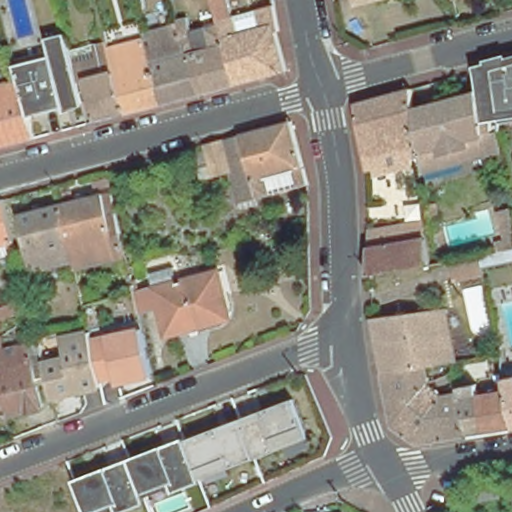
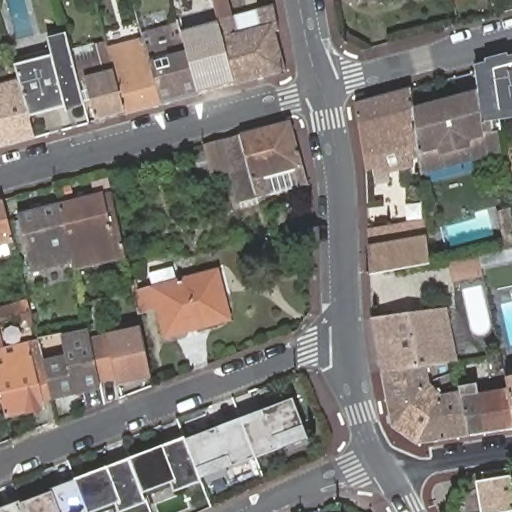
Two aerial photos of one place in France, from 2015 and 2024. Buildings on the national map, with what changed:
unchanged [(277,9),(282,36),(278,37),(286,75),(237,89),(222,29),(214,0),(230,0),(235,20),(277,9)]
unchanged [(361,0),(391,0),(363,7),(361,0)]
unchanged [(451,0),(458,0),(452,2),(451,0)]
unchanged [(189,61),(185,47),(180,26),(191,23),(195,37),(222,29),(237,89),(199,99),(189,61)]
unchanged [(152,70),(149,57),(148,56),(153,55),(150,40),(177,33),(181,47),(185,47),(189,61),(199,99),(163,109),(152,70)]
unchanged [(84,107),(28,122),(27,117),(18,85),(15,74),(50,63),(46,50),(67,44),(75,72),(83,102),(84,107)]
unchanged [(109,56),(145,45),(148,56),(149,57),(152,70),(163,109),(126,119),(109,56)]
unchanged [(101,64),(99,56),(108,52),(109,56),(126,119),(98,126),(89,129),(84,107),(83,102),(75,72),(83,69),(101,64)]
unchanged [(504,137),(495,137),(494,137),(492,137),(490,126),(484,127),(483,124),(482,120),(477,97),(474,82),(473,77),(505,69),(512,67),(512,128),(502,130),(504,137)]
unchanged [(27,117),(28,122),(35,143),(0,153),(0,90),(18,85),(27,117)]
unchanged [(410,116),(415,164),(406,165),(407,172),(370,181),(369,175),(362,177),(353,109),(407,95),(410,116)]
unchanged [(416,172),(415,164),(410,116),(477,97),(482,120),(483,124),(484,127),(490,126),(492,137),(494,137),(495,137),(497,147),(498,157),(498,159),(417,180),(416,172)]
unchanged [(247,207),(244,198),(236,200),(234,192),(241,190),(237,173),(220,177),(210,148),(297,125),(312,187),(247,207)]
unchanged [(72,265),(60,209),(103,197),(103,200),(111,198),(120,236),(125,260),(74,272),(72,265)]
unchanged [(21,249),(14,251),(0,254),(0,200),(8,198),(21,249)]
unchanged [(72,265),(32,275),(18,219),(60,209),(72,265)]
unchanged [(496,251),(505,249),(501,220),(512,218),(512,255),(509,256),(498,258),(496,251)]
unchanged [(371,242),(416,235),(415,224),(423,222),(428,275),(376,283),(375,281),(373,282),(371,242)]
unchanged [(271,255),(296,249),(303,277),(278,280),(271,255)]
unchanged [(484,262),(488,282),(459,287),(455,267),(484,262)]
unchanged [(141,327),(138,311),(223,292),(228,322),(228,325),(227,328),(226,332),(223,335),(220,336),(194,342),(195,348),(173,353),(166,326),(143,332),(141,327)]
unchanged [(33,310),(4,317),(13,348),(40,343),(44,362),(47,377),(36,379),(43,408),(26,412),(25,411),(6,416),(3,402),(0,388),(0,308),(30,300),(33,310)]
unchanged [(373,323),(424,318),(447,317),(461,371),(458,372),(436,376),(431,377),(385,378),(373,323)]
unchanged [(90,338),(141,327),(143,332),(151,373),(116,382),(115,377),(99,379),(90,338)]
unchanged [(99,379),(101,386),(51,397),(47,377),(44,362),(68,357),(64,337),(89,332),(90,338),(99,379)]
unchanged [(511,386),(509,376),(512,375),(512,392),(511,386)]
unchanged [(431,377),(434,392),(446,406),(456,405),(455,392),(462,391),(463,397),(467,418),(471,439),(419,447),(397,430),(385,378),(431,377)]
unchanged [(0,388),(3,402),(0,403),(0,388)]
unchanged [(467,418),(463,397),(481,392),(485,406),(512,399),(512,433),(471,439),(467,418)]
unchanged [(310,439),(201,478),(202,483),(174,493),(170,484),(142,495),(146,504),(124,512),(116,512),(114,505),(95,512),(86,512),(73,480),(185,437),(186,440),(295,398),(310,439)]
new [(477,482),(511,477),(512,485),(512,512),(481,512),(477,482)]
new [(21,500),(73,480),(86,512),(26,512),(21,500)]
new [(26,512),(0,512),(0,508),(21,500),(26,512)]

